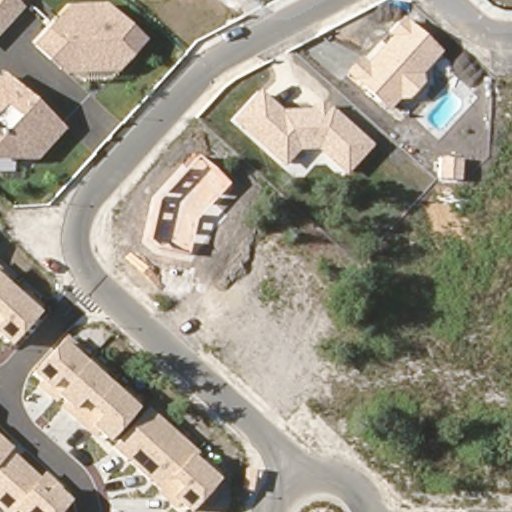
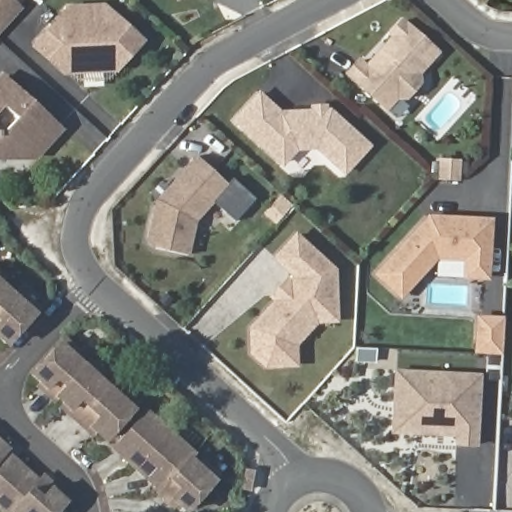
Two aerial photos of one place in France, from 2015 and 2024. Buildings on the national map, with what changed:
unchanged [(0,0),(17,0),(25,6),(0,31),(0,0)]
unchanged [(116,72),(62,75),(31,43),(66,4),(101,1),(145,43),(116,72)]
unchanged [(422,74),(423,83),(410,99),(399,99),(388,111),(345,74),(359,57),(366,63),(391,36),(387,33),(403,16),(442,51),(422,74)]
unchanged [(38,159),(0,161),(0,74),(5,69),(65,126),(38,159)]
unchanged [(346,175),(316,149),(298,149),(283,166),(231,120),(260,89),(282,109),(311,108),(310,104),(327,104),(374,145),(346,175)]
unchanged [(194,220),(188,254),(157,249),(148,239),(157,202),(198,157),(228,184),(194,220)]
new [(464,279),(464,260),(437,260),(400,299),(374,275),(428,214),(493,218),(490,280),(464,279)]
new [(339,322),(319,322),(297,346),(298,366),(265,368),(250,354),(249,327),(273,300),(268,296),(287,276),(291,279),(294,277),(273,257),(297,231),(338,269),(339,322)]
unchanged [(0,340),(0,277),(39,312),(8,346),(0,340)]
new [(503,354),(474,352),(477,315),(505,316),(503,354)]
unchanged [(137,408),(109,441),(96,430),(91,436),(60,408),(64,404),(56,397),(54,401),(37,387),(39,382),(29,373),(60,339),(137,408)]
new [(455,446),(455,436),(391,434),(394,369),(483,373),(479,447),(455,446)]
unchanged [(196,449),(190,454),(218,479),(191,512),(186,512),(178,504),(173,509),(156,494),(159,490),(111,447),(148,408),(196,449)]
unchanged [(9,450),(39,477),(44,473),(55,482),(52,485),(71,502),(61,512),(15,512),(13,511),(12,512),(3,512),(0,509),(0,438),(12,448),(9,450)]

